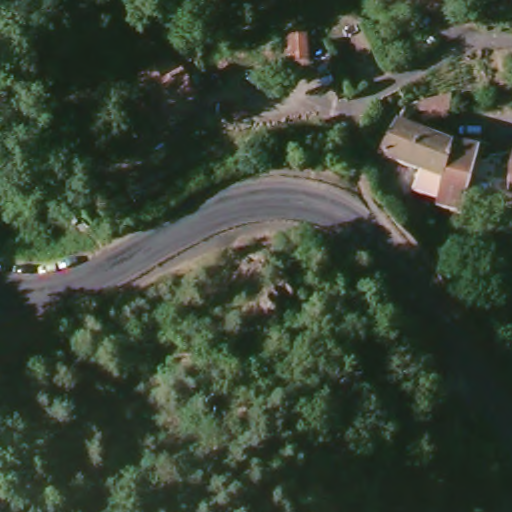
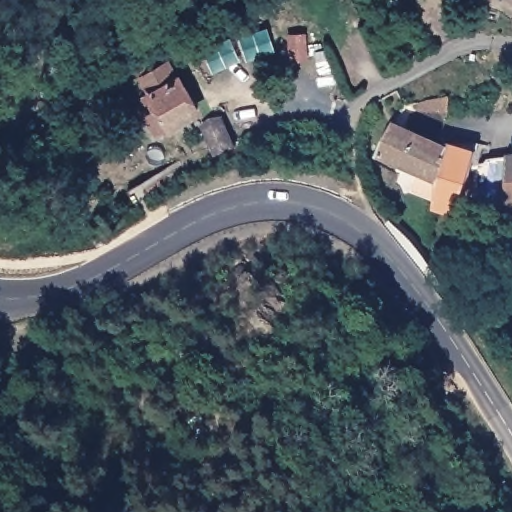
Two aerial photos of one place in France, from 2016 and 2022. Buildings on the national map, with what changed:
unchanged [(290,63),(288,37),(305,36),(306,62),(290,63)]
unchanged [(167,135),(156,118),(158,117),(148,100),(157,96),(148,82),(176,66),(205,114),(167,135)]
unchanged [(412,104),(412,100),(447,93),(445,107),(412,104)]
unchanged [(428,185),(435,186),(433,196),(408,188),(415,169),(402,164),(378,157),(377,154),(377,149),(390,124),(413,134),(438,144),(442,146),(433,174),(431,174),(428,185)]
unchanged [(465,199),(460,214),(432,205),(433,196),(435,186),(428,185),(431,174),(433,174),(442,146),(475,151),(474,159),(505,154),(506,206),(465,199)]
unchanged [(505,154),(512,153),(512,206),(506,206),(505,154)]
unchanged [(502,479),(512,497),(512,512),(498,512),(485,488),(502,479)]

